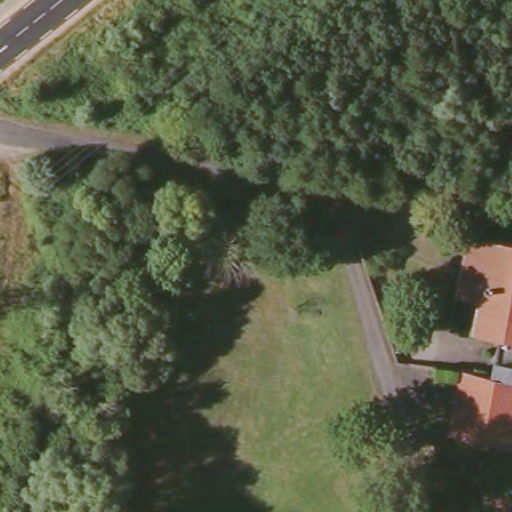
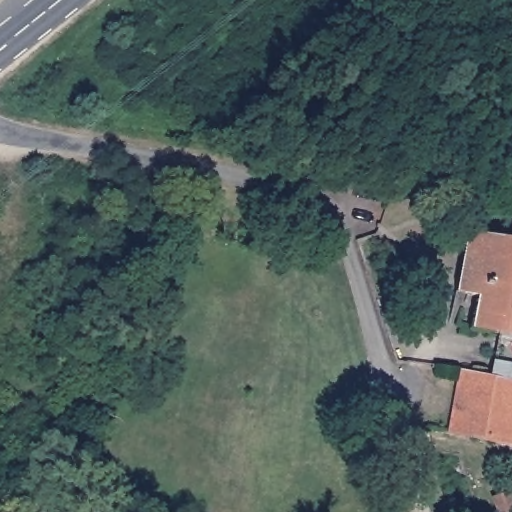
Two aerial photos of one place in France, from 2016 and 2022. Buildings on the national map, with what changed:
unchanged [(472,201),(474,194),(481,196),(479,203),(472,201)]
unchanged [(512,423),(507,446),(445,433),(457,371),(485,377),(495,332),(445,322),(462,231),(512,241),(512,423)]
unchanged [(512,494),(512,512),(495,512),(492,498),(512,494)]

